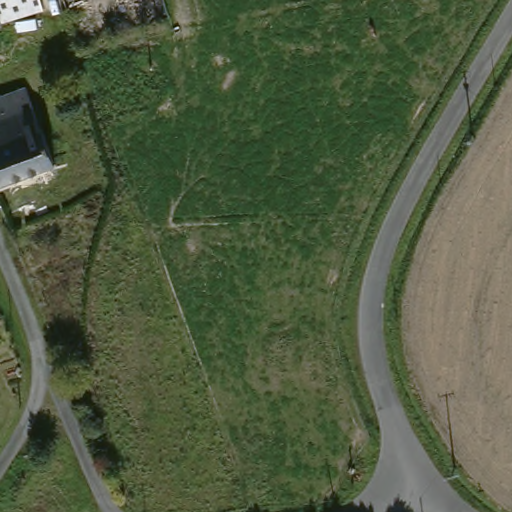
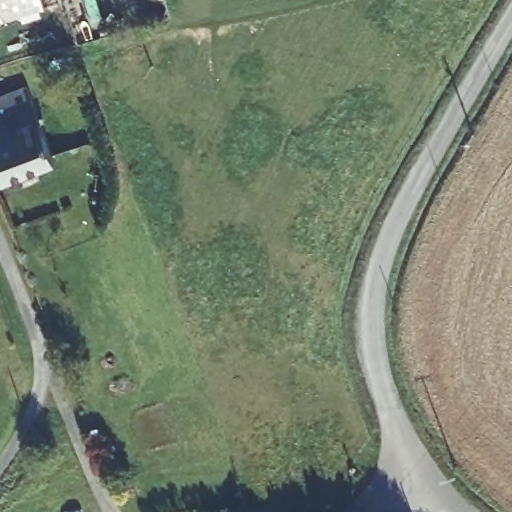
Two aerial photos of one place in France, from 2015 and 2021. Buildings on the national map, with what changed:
unchanged [(48,0),(0,17),(0,0),(48,0)]
unchanged [(61,158),(2,179),(0,171),(0,97),(0,96),(0,91),(8,88),(10,92),(34,85),(61,158)]

